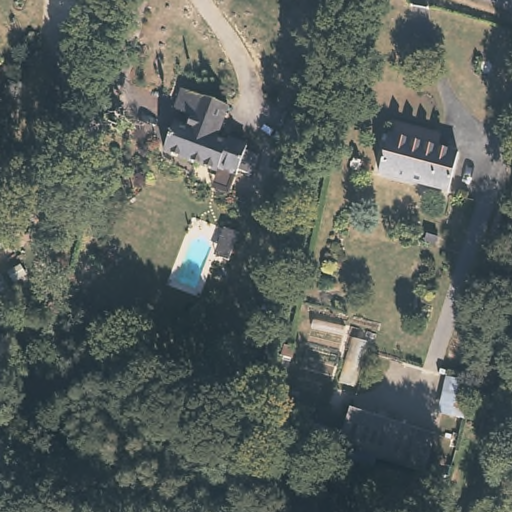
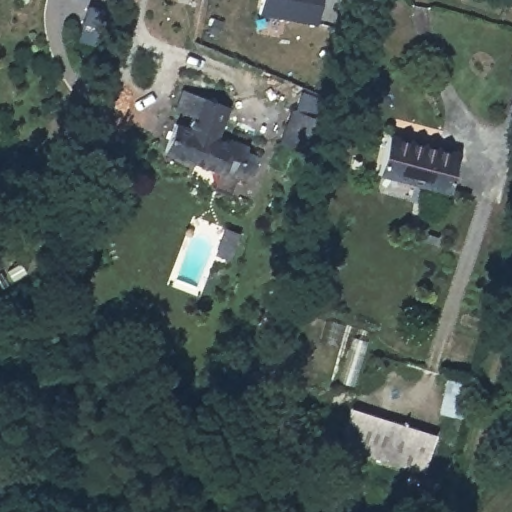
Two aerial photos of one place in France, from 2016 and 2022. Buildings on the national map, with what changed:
new [(260,13),(262,0),(320,0),(316,24),(260,13)]
unchanged [(220,133),(232,138),(233,134),(252,142),(251,145),(263,151),(250,180),(238,175),(237,179),(220,171),(218,175),(165,154),(179,119),(192,124),(196,111),(192,109),(180,104),(187,84),(200,89),(231,101),(220,133)]
unchanged [(325,119),(313,154),(286,145),(298,111),(325,119)]
unchanged [(458,151),(448,191),(380,172),(391,133),(458,151)]
unchanged [(263,316),(268,288),(271,278),(287,282),(285,292),(279,319),(263,316)]
unchanged [(425,434),(415,470),(345,448),(356,413),(425,434)]

